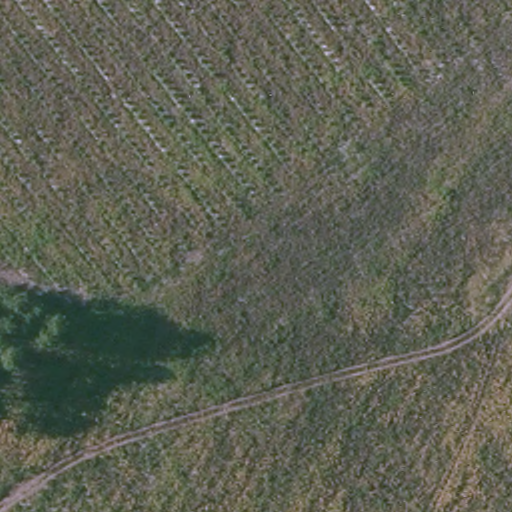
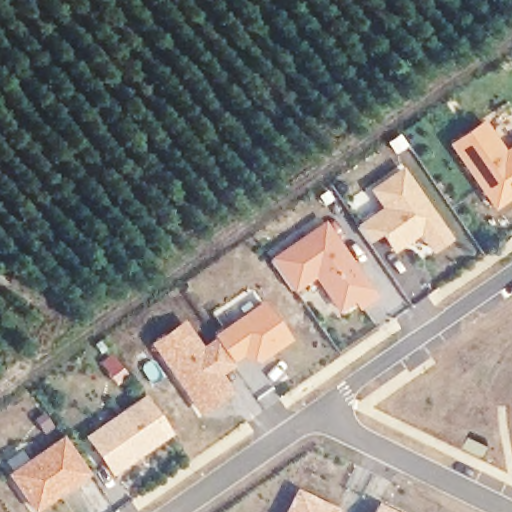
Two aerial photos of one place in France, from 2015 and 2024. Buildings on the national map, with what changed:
new [(496,210),(451,145),(485,121),(507,152),(512,148),(512,198),(496,210)]
new [(394,254),(380,234),(369,241),(358,226),(383,208),(370,190),(403,168),(452,238),(434,252),(419,236),(394,254)]
new [(315,278),(295,292),(272,260),(325,222),(372,288),(378,298),(361,311),(355,302),(339,312),(315,278)]
new [(201,416),(152,344),(185,321),(203,347),(217,337),(215,336),(265,301),(292,340),(262,361),(243,357),(222,373),(234,392),(201,416)]
new [(86,437),(146,395),(173,434),(113,476),(86,437)]
new [(9,476),(64,437),(90,475),(38,512),(34,512),(9,476)]
new [(298,490),(339,509),(338,512),(287,512),(298,490)]
new [(378,503),(395,512),(374,512),(378,503)]

